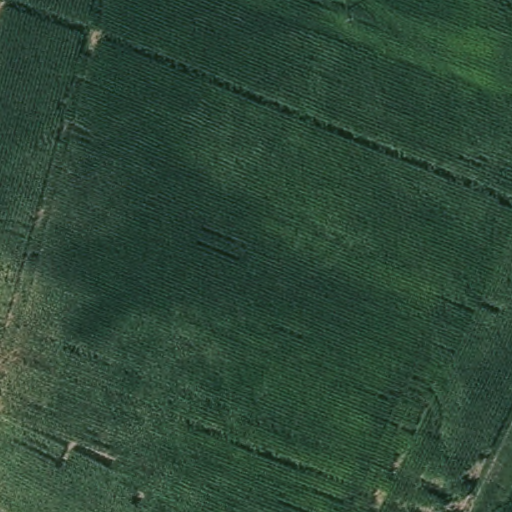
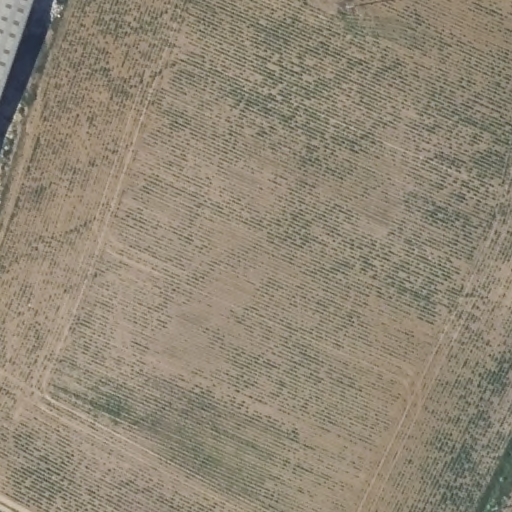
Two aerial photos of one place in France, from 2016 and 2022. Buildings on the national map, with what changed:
new [(32,0),(0,96),(0,0),(32,0)]

